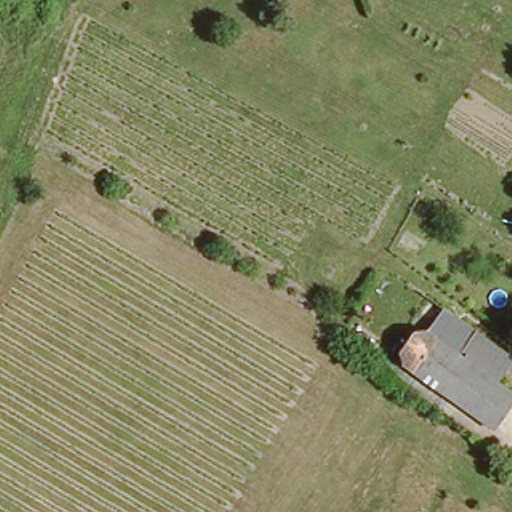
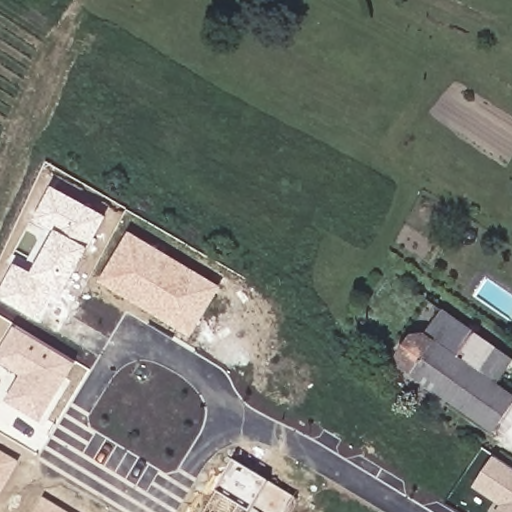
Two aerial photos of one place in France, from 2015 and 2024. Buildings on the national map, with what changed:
new [(91,247),(90,247),(65,291),(58,287),(40,318),(0,295),(0,293),(16,262),(34,271),(58,229),(36,217),(54,184),(109,215),(91,247)]
new [(100,280),(131,230),(223,284),(192,335),(100,280)]
unchanged [(512,360),(498,379),(465,356),(421,326),(440,304),(512,353),(512,360)]
new [(42,420),(6,399),(21,374),(0,361),(0,352),(16,325),(77,362),(42,420)]
unchanged [(395,362),(421,326),(465,356),(441,392),(395,362)]
unchanged [(465,356),(498,379),(512,390),(512,410),(499,430),(441,392),(465,356)]
new [(0,497),(0,451),(21,463),(0,497)]
new [(512,468),(512,512),(495,512),(501,503),(473,484),(493,455),(512,468)]
new [(244,508),(241,512),(208,512),(219,492),(236,462),(272,484),(297,499),(289,512),(249,512),(244,508)]
new [(66,512),(37,512),(45,499),(66,512)]

